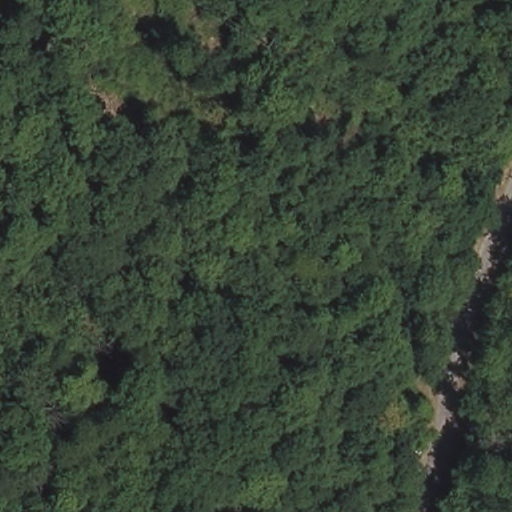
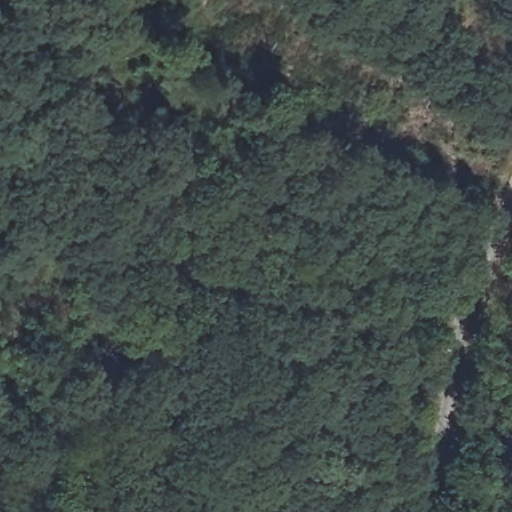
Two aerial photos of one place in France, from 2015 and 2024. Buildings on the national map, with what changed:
[]

